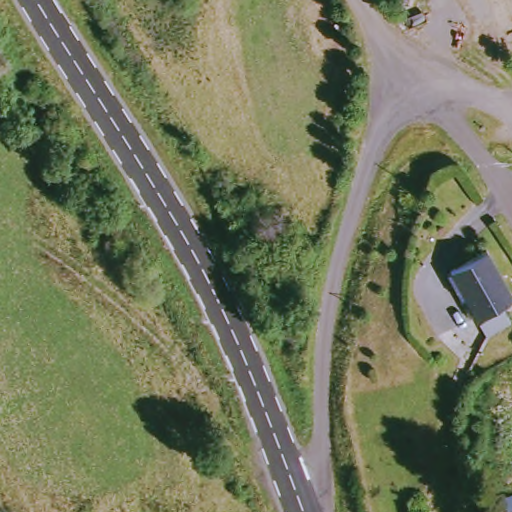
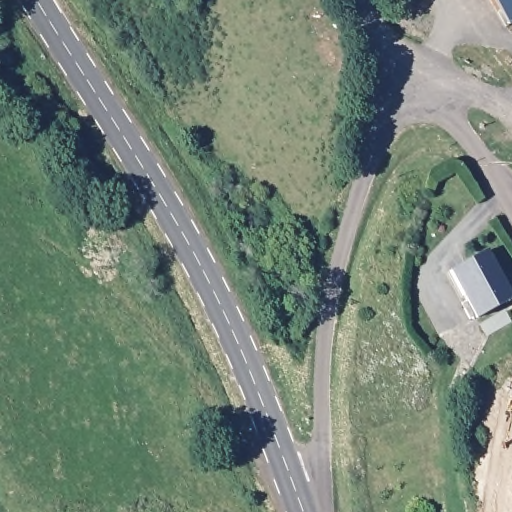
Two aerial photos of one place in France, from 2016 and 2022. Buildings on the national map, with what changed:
new [(492,0),(512,0),(512,24),(507,26),(492,0)]
unchanged [(468,314),(442,263),(479,245),(504,294),(468,314)]
unchanged [(477,331),(471,319),(497,307),(502,318),(477,331)]
unchanged [(512,495),(512,509),(492,511),(492,498),(512,495)]

